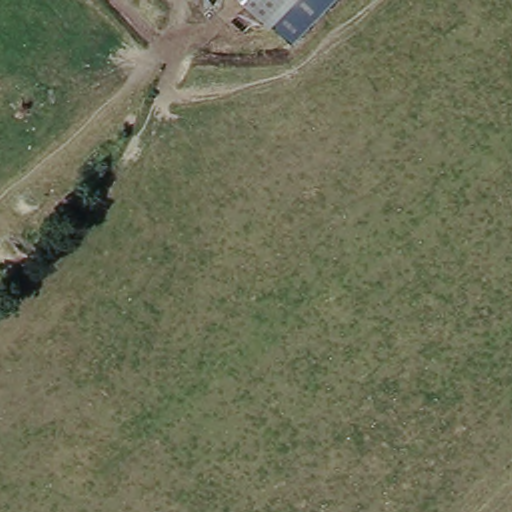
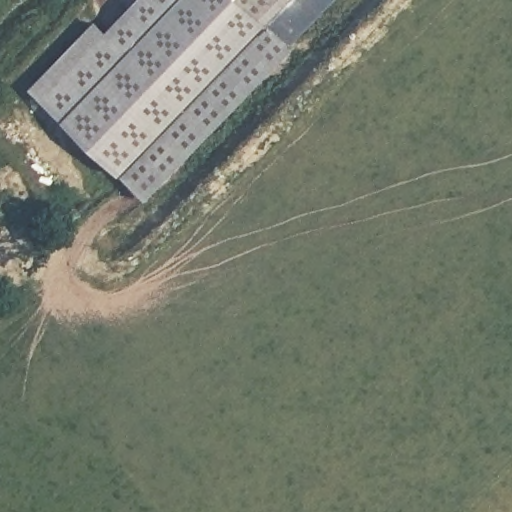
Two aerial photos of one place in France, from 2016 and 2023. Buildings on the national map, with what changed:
new [(99,22),(110,32),(141,0),(338,0),(293,45),(297,52),(149,203),(31,91),(99,22)]
demolished [(297,0),(273,25),(247,0),(297,0)]

